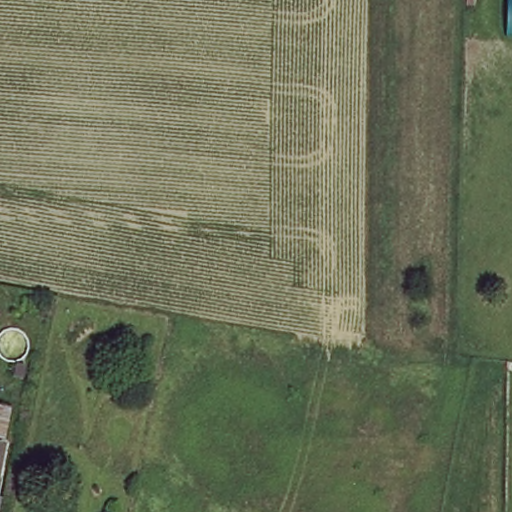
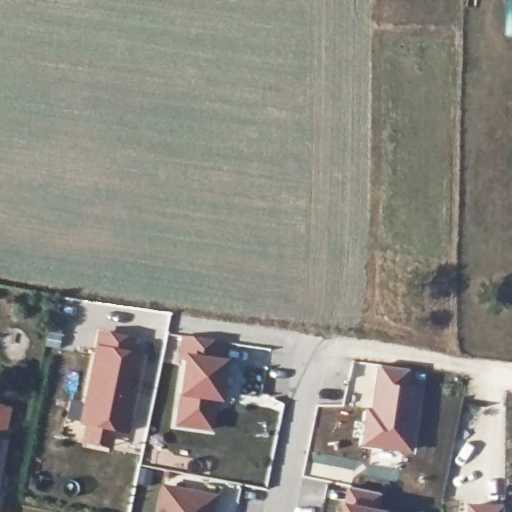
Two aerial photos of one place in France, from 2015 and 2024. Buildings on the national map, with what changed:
new [(507,0),(512,0),(512,32),(506,31),(507,0)]
new [(132,344),(129,360),(138,361),(123,436),(79,427),(98,338),(132,344)]
new [(221,346),(218,367),(222,367),(217,405),(212,404),(208,434),(175,429),(185,363),(178,362),(181,341),(221,346)]
new [(412,451),(362,444),(368,407),(371,408),(379,365),(412,369),(409,385),(421,387),(412,451)]
unchanged [(0,441),(0,408),(8,411),(3,442),(0,441)]
new [(161,485),(216,495),(213,512),(156,512),(161,485)]
new [(380,507),(387,509),(398,511),(397,512),(342,512),(345,501),(348,486),(381,493),(380,507)]
new [(468,504),(502,505),(502,512),(467,512),(468,504)]

